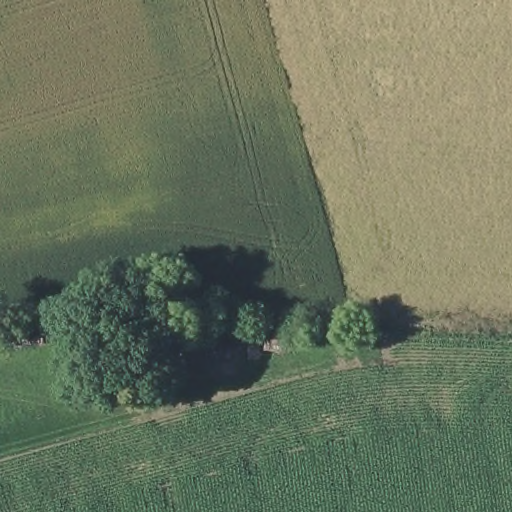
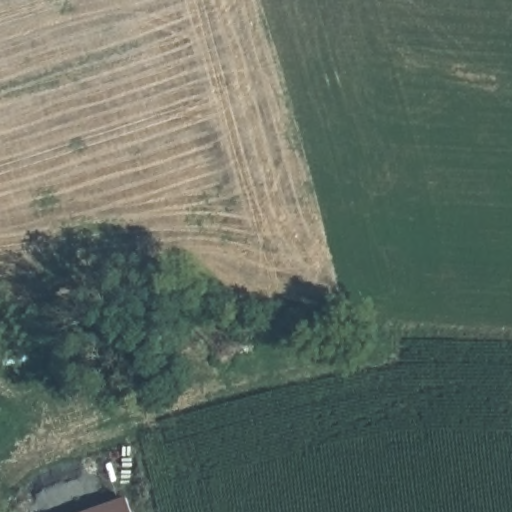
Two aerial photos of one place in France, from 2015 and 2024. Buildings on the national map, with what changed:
new [(131,512),(82,512),(126,496),(131,512)]

